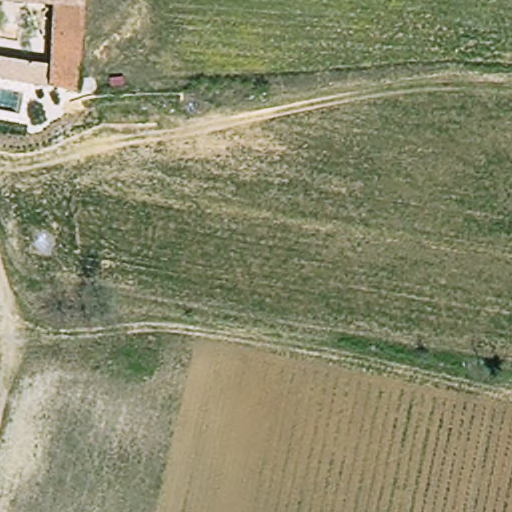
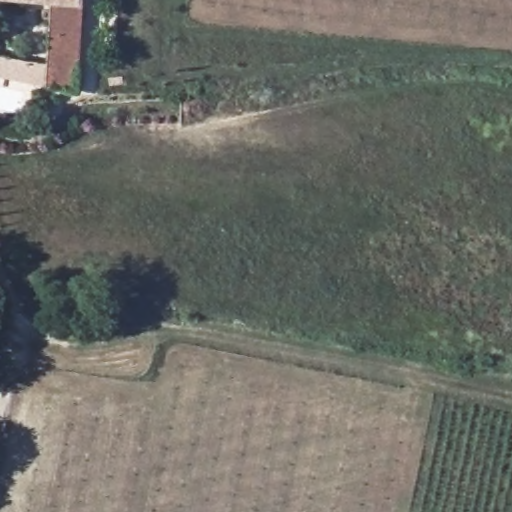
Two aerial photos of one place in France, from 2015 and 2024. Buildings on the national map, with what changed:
unchanged [(0,79),(0,55),(46,63),(49,9),(0,4),(0,0),(81,0),(74,93),(0,79)]

